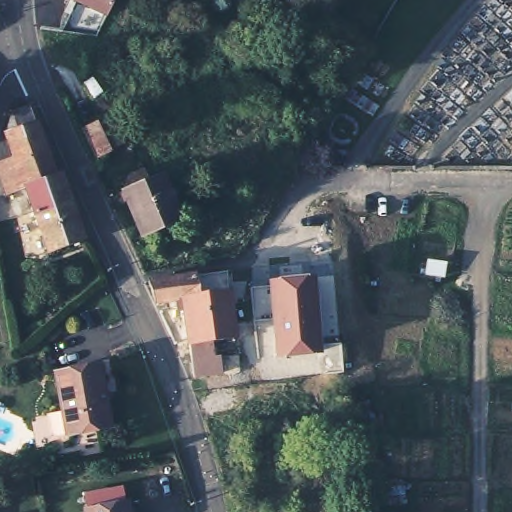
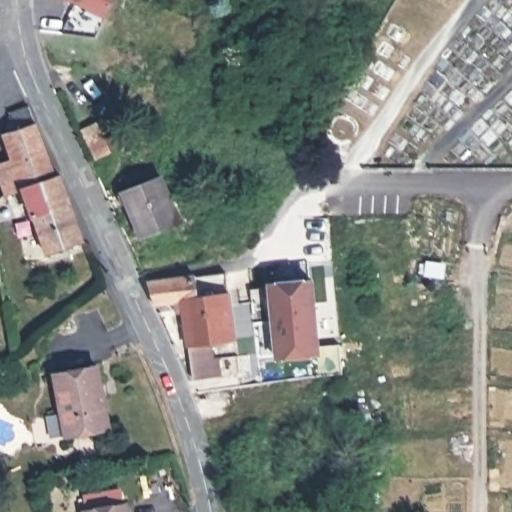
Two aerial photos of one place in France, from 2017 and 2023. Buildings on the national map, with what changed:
unchanged [(78,233),(45,245),(28,190),(26,191),(22,178),(5,183),(0,169),(0,137),(4,120),(7,106),(27,101),(52,165),(78,233)]
unchanged [(106,124),(119,153),(105,160),(91,131),(106,124)]
unchanged [(142,166),(147,177),(159,172),(181,217),(145,234),(122,189),(125,188),(120,177),(142,166)]
unchanged [(184,274),(187,293),(148,297),(135,274),(184,274)]
unchanged [(274,360),(266,282),(314,277),(321,354),(274,360)]
unchanged [(230,336),(205,339),(207,352),(222,350),(224,366),(197,369),(187,293),(223,289),(230,336)]
unchanged [(94,353),(104,414),(65,422),(53,361),(94,353)]
unchanged [(82,503),(123,497),(125,512),(84,512),(82,503)]

